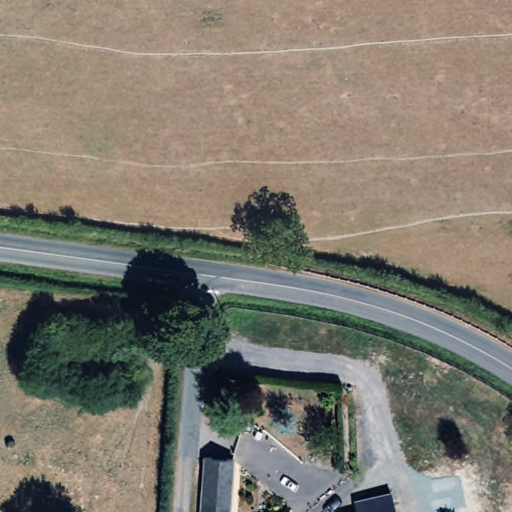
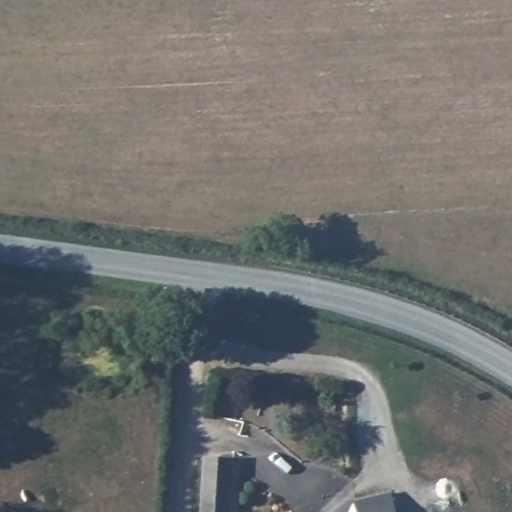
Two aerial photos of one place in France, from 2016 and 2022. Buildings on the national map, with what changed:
unchanged [(221,462),(219,512),(197,512),(200,461),(221,462)]
unchanged [(398,512),(346,512),(345,501),(395,493),(398,512)]

